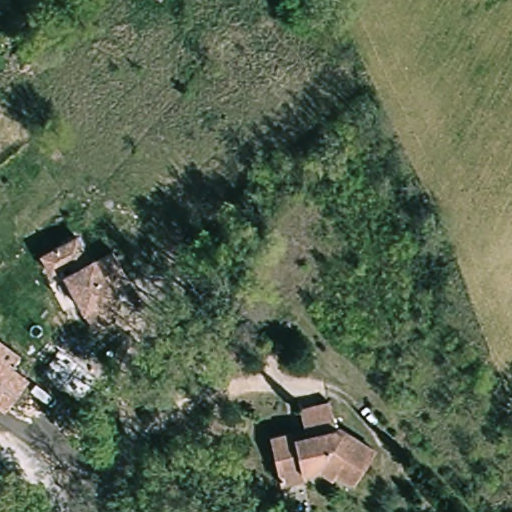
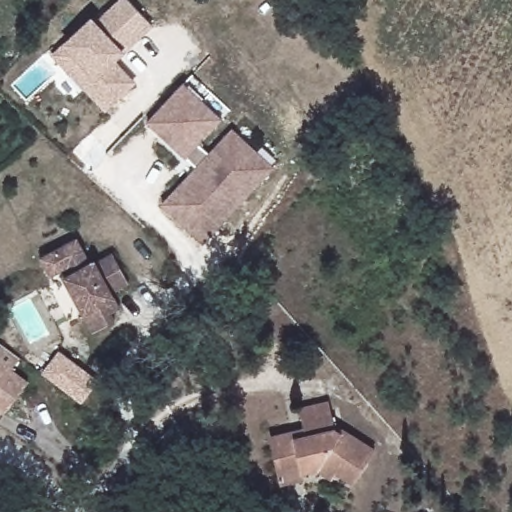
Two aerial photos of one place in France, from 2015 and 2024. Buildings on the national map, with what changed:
new [(101,15),(116,0),(129,0),(149,22),(128,42),(101,15)]
new [(129,82),(102,110),(65,74),(49,58),(60,47),(86,21),(90,25),(101,15),(128,42),(108,62),(114,68),(129,82)]
new [(194,167),(144,122),(179,83),(219,118),(196,143),(207,152),(230,127),(272,165),(211,233),(203,243),(160,205),(169,195),(194,167)]
unchanged [(112,312),(116,319),(95,331),(65,277),(72,273),(68,266),(51,276),(41,259),(58,249),(76,239),(91,264),(95,262),(96,263),(114,253),(130,282),(113,292),(118,301),(121,306),(112,312)]
unchanged [(11,369),(27,381),(5,412),(0,408),(0,341),(20,357),(11,369)]
new [(59,352),(97,382),(80,403),(42,374),(59,352)]
unchanged [(280,484),(277,469),(270,436),(303,428),(299,408),(328,401),(334,428),(337,427),(373,450),(352,483),(335,472),(331,479),(316,469),(301,472),(303,479),(280,484)]

